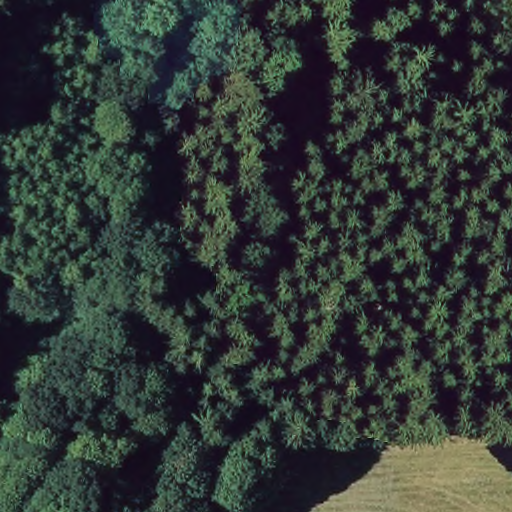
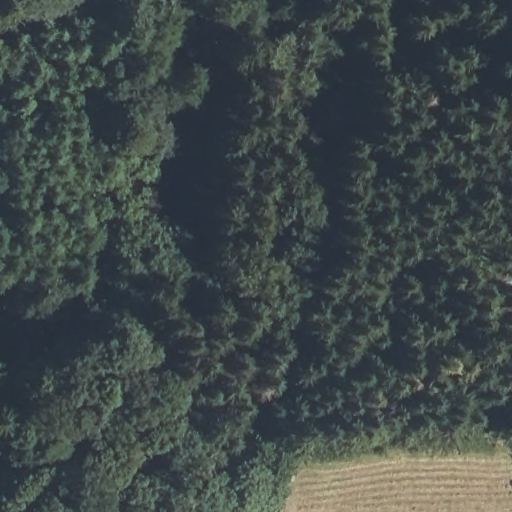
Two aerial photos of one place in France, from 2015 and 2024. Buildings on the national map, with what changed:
[]

